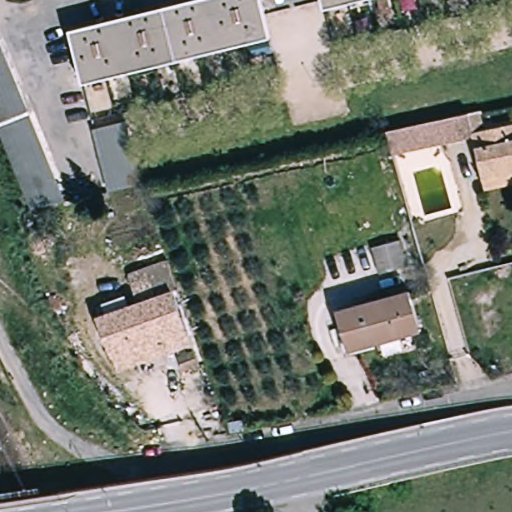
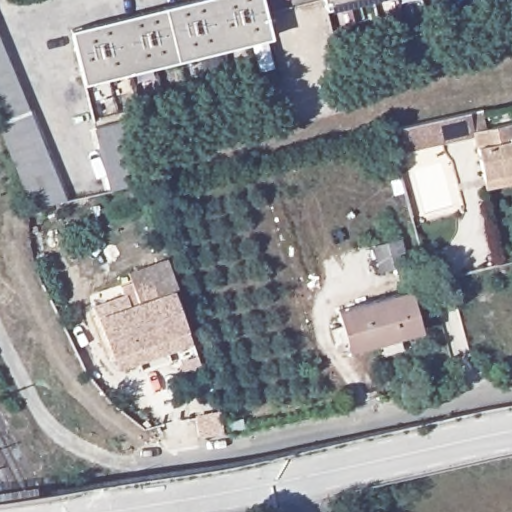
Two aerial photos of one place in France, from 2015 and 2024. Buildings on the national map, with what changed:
unchanged [(187,0),(258,0),(267,36),(79,82),(66,30),(187,0)]
unchanged [(325,7),(324,0),(354,0),(325,7)]
unchanged [(30,212),(0,141),(0,58),(60,205),(30,212)]
unchanged [(468,128),(392,154),(387,128),(477,108),(483,126),(468,128)]
unchanged [(111,190),(95,129),(127,121),(142,184),(111,190)]
unchanged [(469,132),(512,122),(512,180),(481,187),(469,132)]
unchanged [(407,265),(380,273),(372,247),(400,239),(407,265)]
unchanged [(94,316),(101,314),(98,304),(122,296),(125,305),(135,302),(125,274),(164,260),(173,289),(169,290),(185,337),(160,346),(157,338),(107,355),(94,316)]
unchanged [(342,348),(334,316),(406,296),(417,336),(372,348),(345,355),(342,348)]
unchanged [(195,351),(200,365),(183,371),(178,357),(195,351)]

